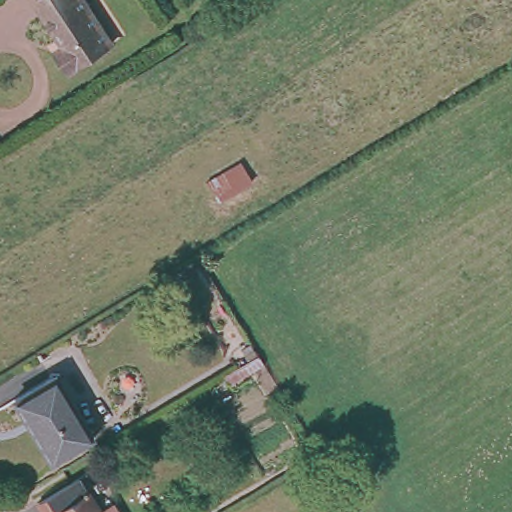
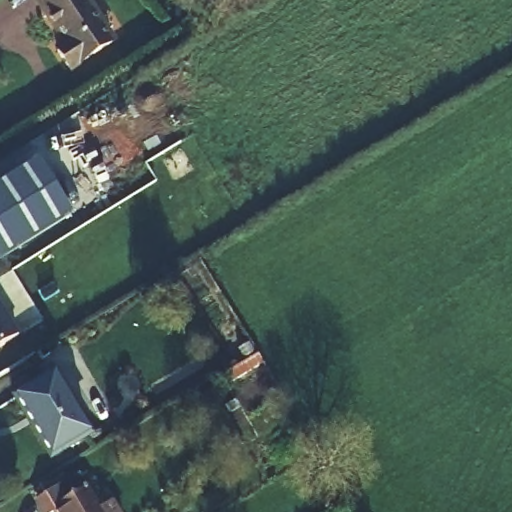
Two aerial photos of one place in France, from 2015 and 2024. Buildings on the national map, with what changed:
unchanged [(71,70),(58,50),(66,45),(37,0),(85,0),(112,42),(71,70)]
new [(37,161),(71,217),(0,261),(0,184),(37,161)]
new [(18,337),(0,348),(0,309),(18,337)]
unchanged [(249,345),(254,353),(245,358),(240,350),(249,345)]
unchanged [(263,363),(229,384),(223,374),(258,354),(263,363)]
unchanged [(52,376),(89,435),(49,459),(14,399),(52,376)]
unchanged [(37,502),(78,477),(85,473),(105,505),(110,502),(116,512),(43,512),(37,502)]

